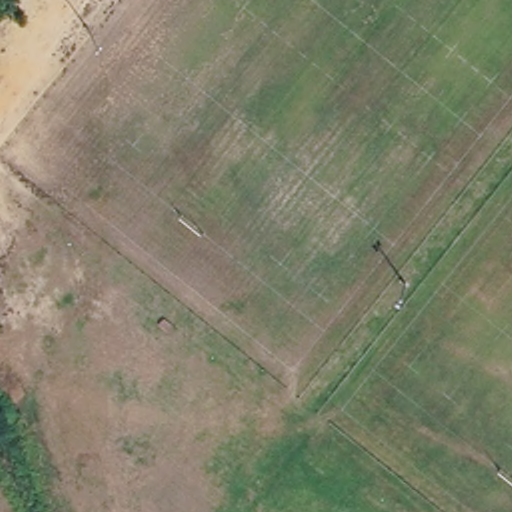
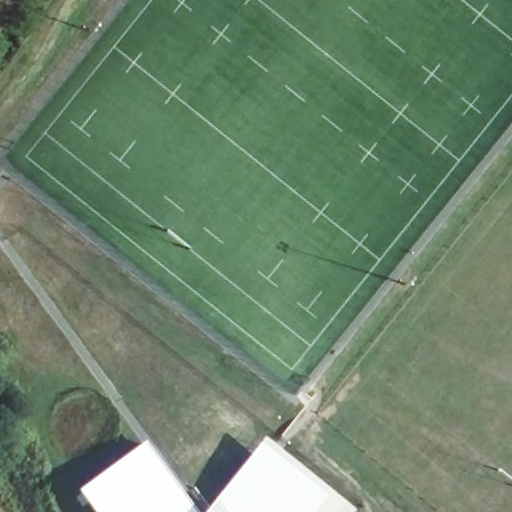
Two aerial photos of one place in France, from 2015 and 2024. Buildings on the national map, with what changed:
new [(196,512),(93,512),(78,490),(146,441),(196,512)]
new [(214,503),(261,443),(328,495),(315,512),(206,512),(214,503)]

